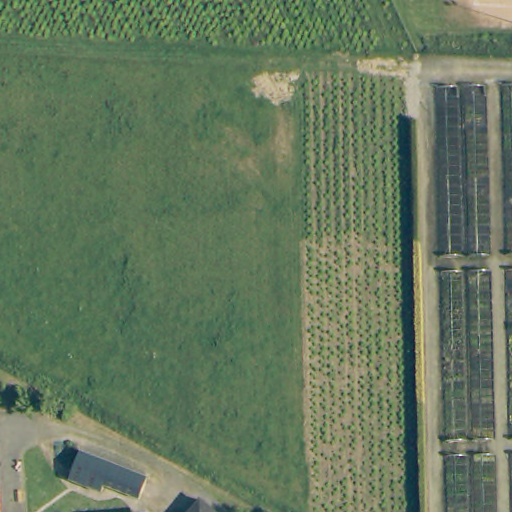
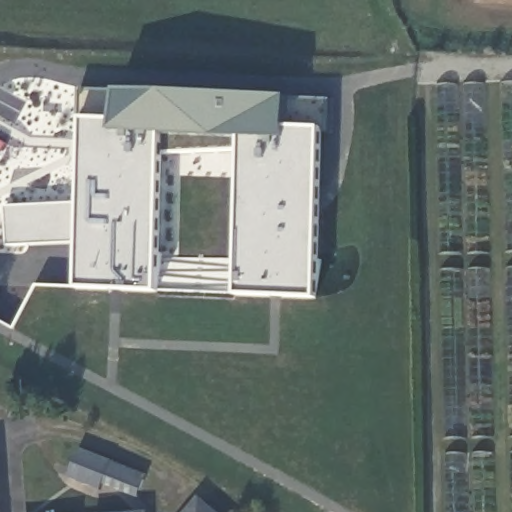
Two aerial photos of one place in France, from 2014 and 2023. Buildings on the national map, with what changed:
new [(78,287),(84,240),(9,244),(10,205),(77,200),(82,87),(330,100),(330,130),(325,130),(318,296),(78,287)]
unchanged [(86,448),(150,475),(143,490),(113,477),(110,482),(78,470),(86,448)]
unchanged [(191,511),(205,496),(218,507),(224,512),(190,512),(191,511)]

